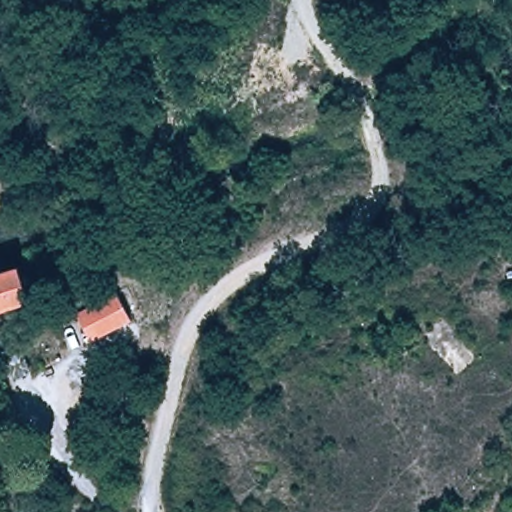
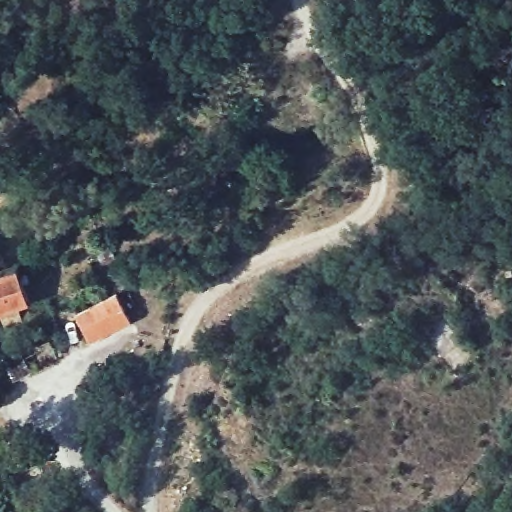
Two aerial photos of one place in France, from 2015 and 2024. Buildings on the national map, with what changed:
unchanged [(0,314),(0,272),(16,266),(29,303),(0,314)]
unchanged [(122,290),(133,319),(91,335),(80,307),(122,290)]

